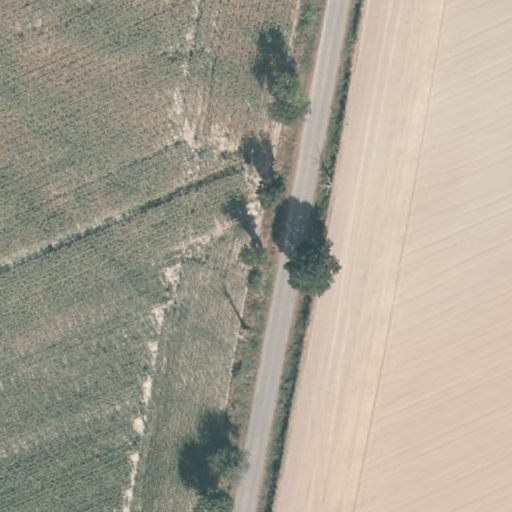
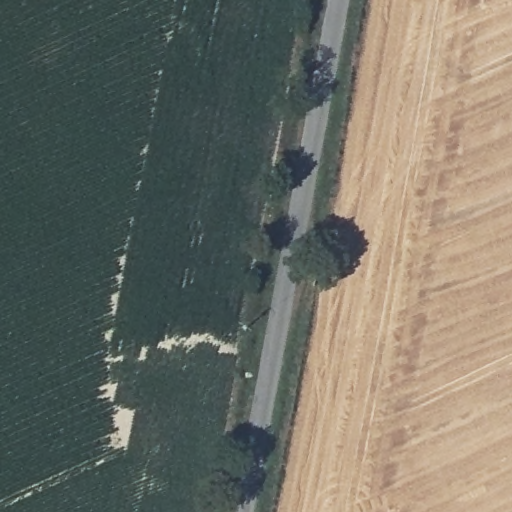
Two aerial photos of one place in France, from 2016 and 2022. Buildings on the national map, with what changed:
[]

